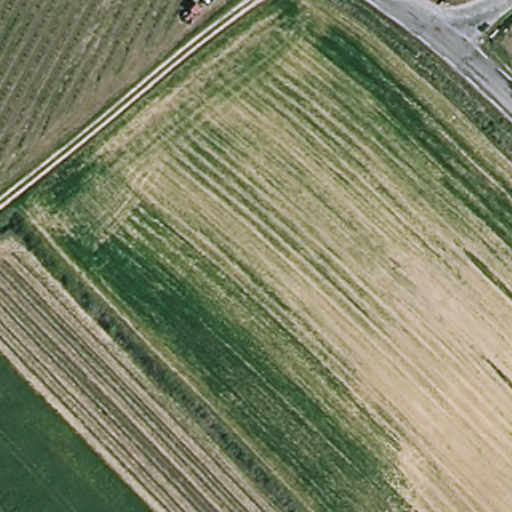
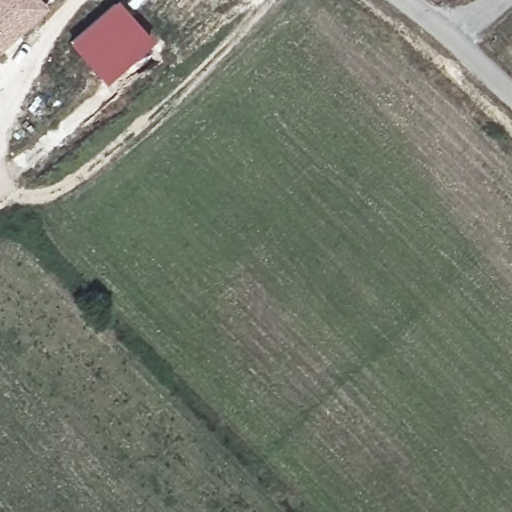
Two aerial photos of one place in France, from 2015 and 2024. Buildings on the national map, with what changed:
new [(48,9),(0,52),(0,0),(40,0),(48,9)]
new [(151,40),(103,82),(67,42),(114,0),(115,0),(151,40)]

